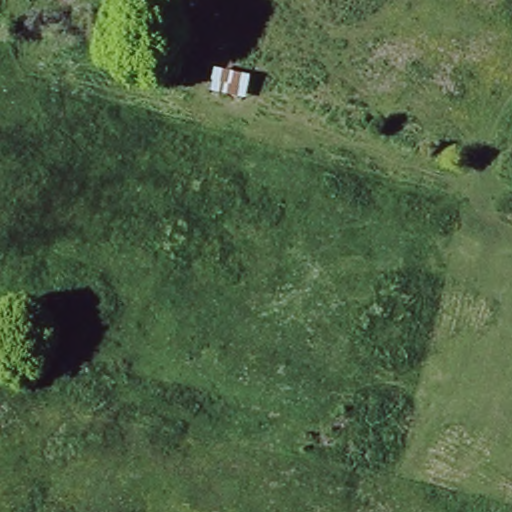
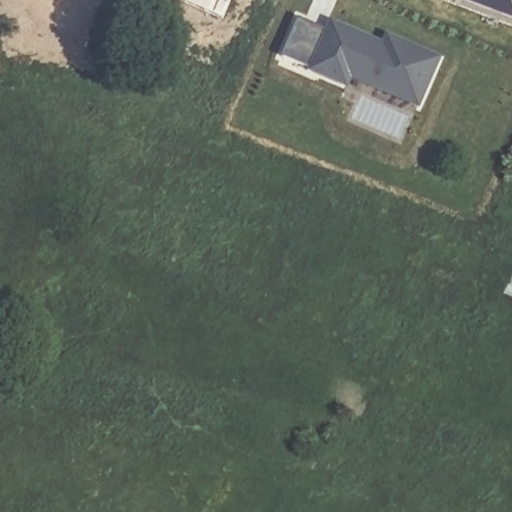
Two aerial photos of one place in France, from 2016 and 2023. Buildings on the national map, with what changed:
new [(466,0),(512,0),(512,23),(465,3),(466,0)]
new [(422,110),(354,82),(350,90),(309,73),(311,68),(284,57),(300,19),(329,31),(333,21),(386,42),(388,36),(444,58),(422,110)]
demolished [(252,82),(248,104),(211,95),(216,74),(252,82)]

